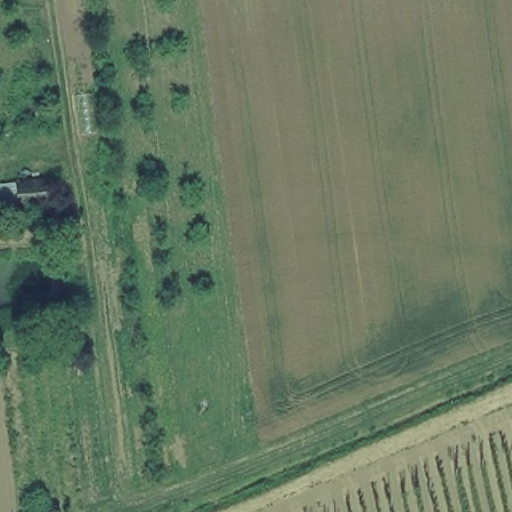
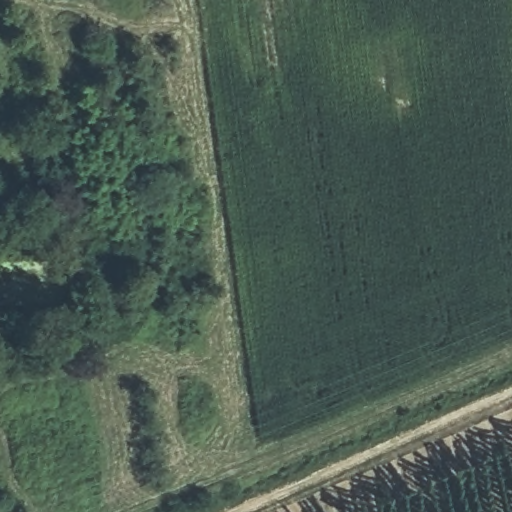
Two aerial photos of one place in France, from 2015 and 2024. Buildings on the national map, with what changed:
unchanged [(13,184),(15,203),(0,205),(0,186),(13,184)]

